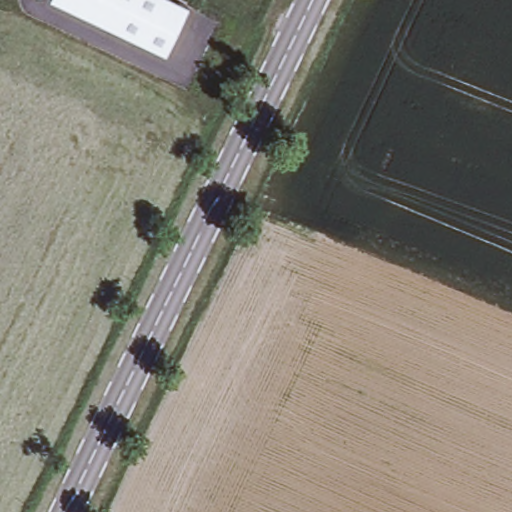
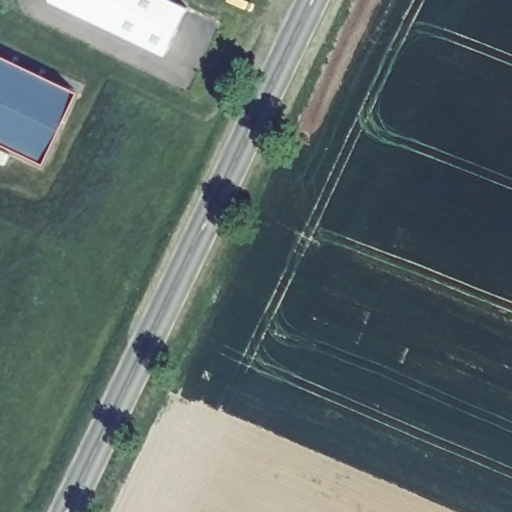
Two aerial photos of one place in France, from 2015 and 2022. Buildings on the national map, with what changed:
unchanged [(166,55),(50,0),(51,0),(173,0),(188,8),(166,55)]
new [(38,160),(0,142),(0,53),(73,88),(38,160)]

